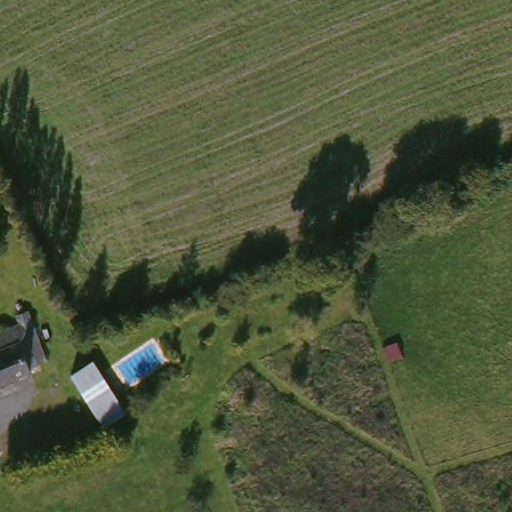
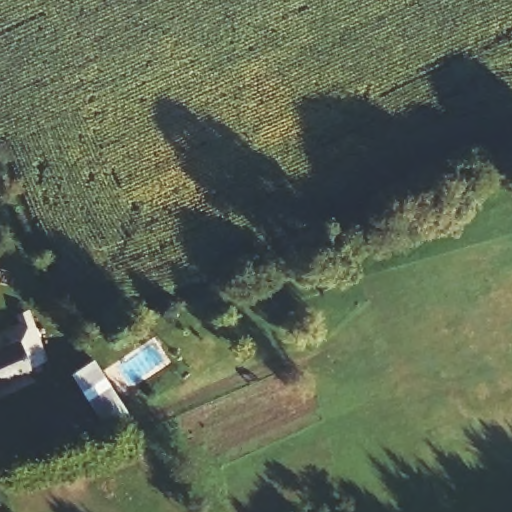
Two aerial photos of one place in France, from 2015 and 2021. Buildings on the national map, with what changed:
unchanged [(29,370),(29,373),(30,376),(0,388),(0,334),(29,322),(47,362),(29,370)]
unchanged [(71,373),(93,361),(126,412),(104,426),(71,373)]

